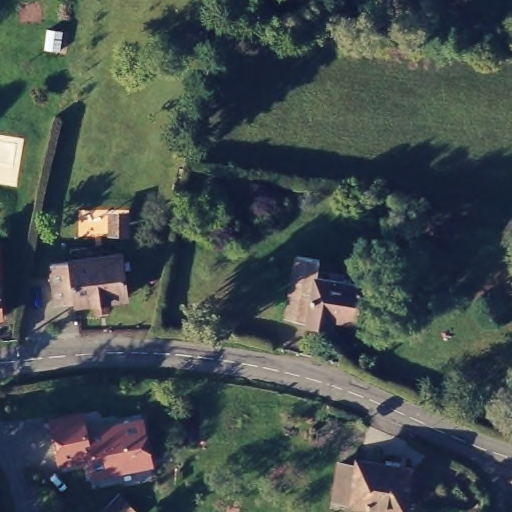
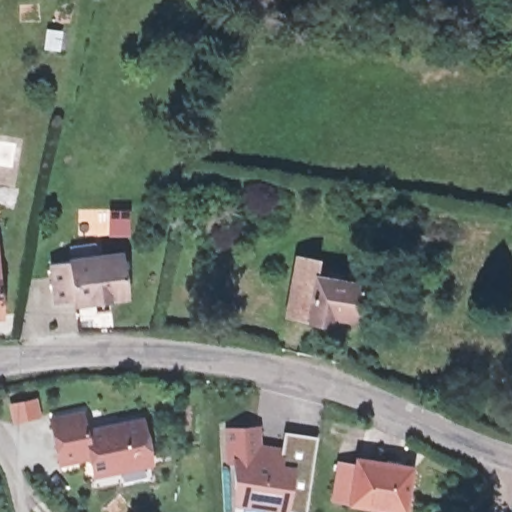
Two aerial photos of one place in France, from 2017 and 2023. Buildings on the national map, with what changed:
unchanged [(131,207),(131,234),(103,233),(103,207),(131,207)]
unchanged [(126,289),(77,294),(77,292),(57,294),(53,256),(122,248),(126,289)]
unchanged [(352,311),(330,307),(329,315),(287,307),(298,249),(318,253),(317,268),(360,275),(352,311)]
unchanged [(50,418),(83,412),(88,427),(143,417),(152,464),(91,477),(88,459),(57,464),(50,418)]
new [(237,504),(235,463),(230,462),(228,430),(258,429),(258,448),(269,449),(268,454),(281,456),(285,432),(317,437),(306,512),(292,512),(285,511),(264,508),(237,504)]
unchanged [(352,494),(335,492),(340,455),(357,458),(358,453),(410,460),(404,501),(352,494)]
unchanged [(118,491),(137,512),(109,512),(103,506),(118,491)]

